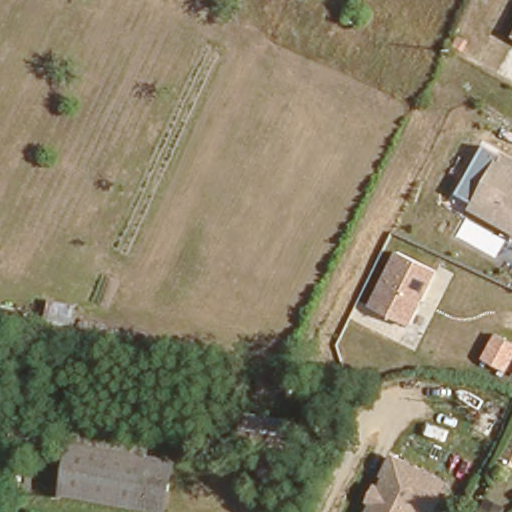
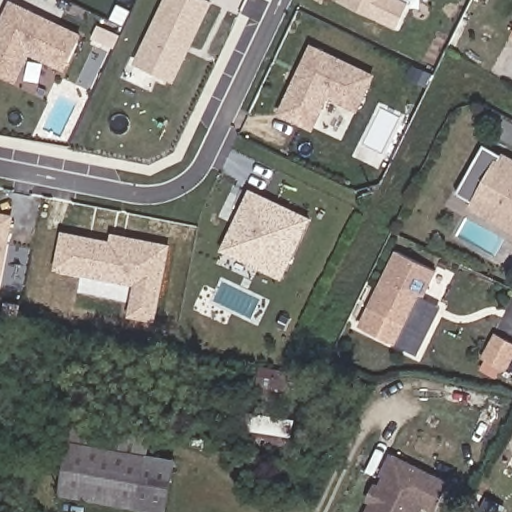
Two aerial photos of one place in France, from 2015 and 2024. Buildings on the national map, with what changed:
new [(83,34),(66,72),(29,56),(16,81),(0,75),(0,17),(8,0),(11,0),(83,34)]
new [(210,0),(175,83),(133,63),(163,0),(209,0),(210,0)]
new [(409,1),(396,28),(338,0),(407,0),(409,1)]
unchanged [(508,38),(512,31),(512,41),(508,38)]
new [(309,43),(374,74),(357,111),(329,99),(314,130),(279,113),(309,43)]
unchanged [(503,156),(512,161),(512,209),(482,192),(503,156)]
new [(309,217),(282,279),(219,249),(247,189),(309,217)]
unchanged [(512,209),(512,230),(474,208),(482,192),(512,209)]
new [(0,285),(0,211),(11,214),(0,285)]
new [(108,239),(109,231),(169,244),(153,321),(125,316),(130,285),(53,271),(60,231),(108,239)]
unchanged [(412,327),(374,308),(400,253),(438,272),(412,327)]
unchanged [(512,346),(512,368),(508,376),(484,362),(498,338),(512,346)]
unchanged [(288,374),(293,375),(288,402),(253,395),(259,369),(288,374)]
unchanged [(299,422),(293,453),(239,445),(242,413),(299,422)]
unchanged [(14,433),(16,415),(54,420),(51,442),(34,439),(34,435),(14,433)]
unchanged [(144,450),(134,502),(58,487),(68,435),(71,419),(146,432),(144,450)]
unchanged [(144,450),(174,456),(164,508),(134,502),(144,450)]
unchanged [(376,504),(382,493),(379,491),(387,477),(384,475),(392,459),(407,466),(446,486),(433,511),(422,505),(418,512),(369,512),(374,502),(376,504)]

